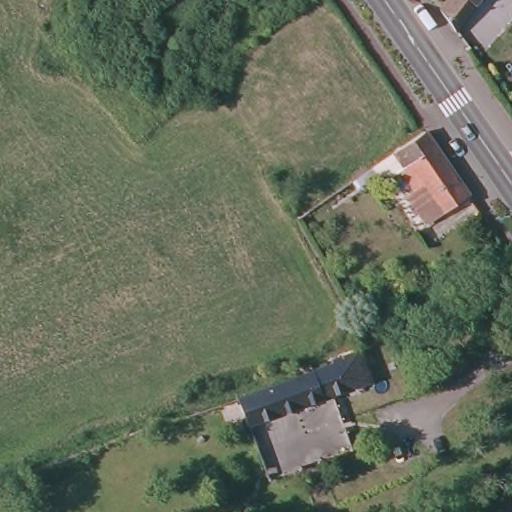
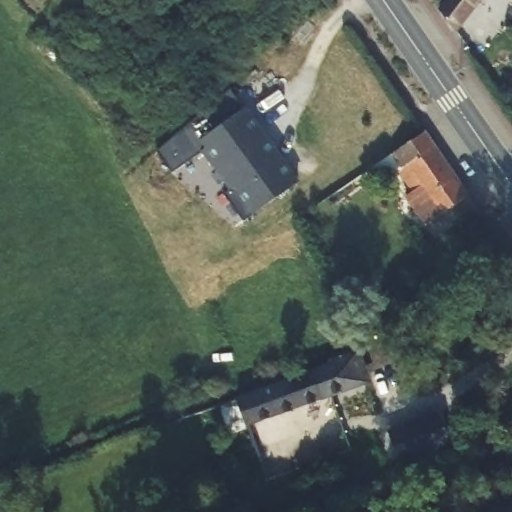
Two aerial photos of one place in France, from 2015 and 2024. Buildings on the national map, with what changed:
unchanged [(436,14),(445,0),(477,0),(450,35),(436,14)]
new [(207,149),(172,174),(156,152),(235,96),(297,183),(243,222),(226,197),(223,194),(233,187),(207,149)]
unchanged [(423,135),(468,202),(426,225),(410,197),(415,193),(402,171),(385,177),(376,181),(372,174),(379,168),(420,137),(423,135)]
unchanged [(318,376),(317,371),(338,363),(350,392),(232,436),(222,410),(318,376)]
demolished [(368,394),(378,421),(357,431),(365,450),(351,455),(333,407),(368,394)]

